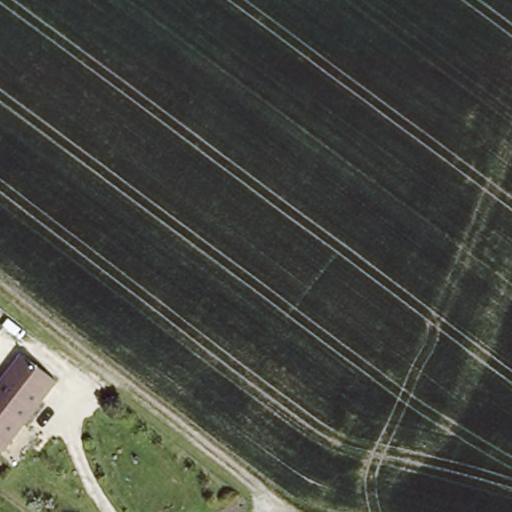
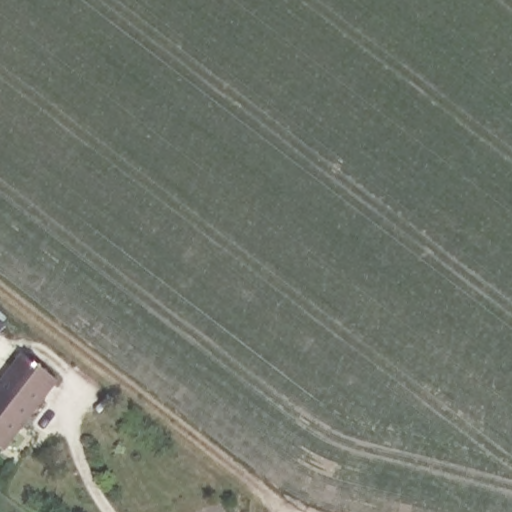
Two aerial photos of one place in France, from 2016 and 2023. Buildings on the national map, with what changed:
unchanged [(0,330),(0,327),(2,328),(0,330)]
unchanged [(9,449),(0,442),(0,390),(30,351),(64,378),(27,426),(34,432),(16,454),(9,449)]

